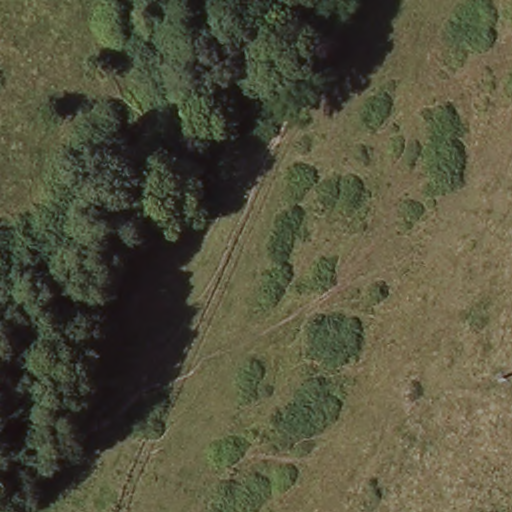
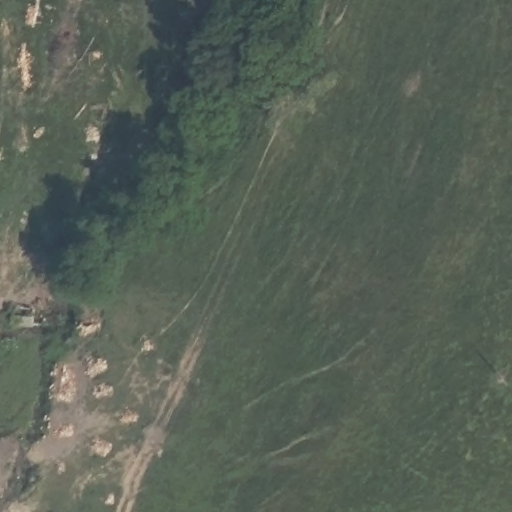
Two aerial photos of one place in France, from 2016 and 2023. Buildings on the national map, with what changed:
unchanged [(10,322),(31,328),(29,342),(6,337),(10,322)]

